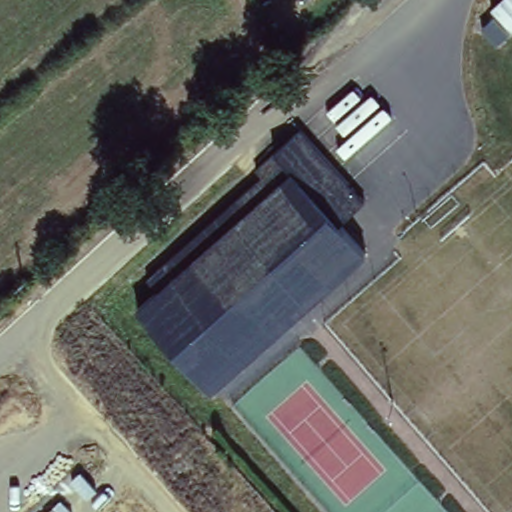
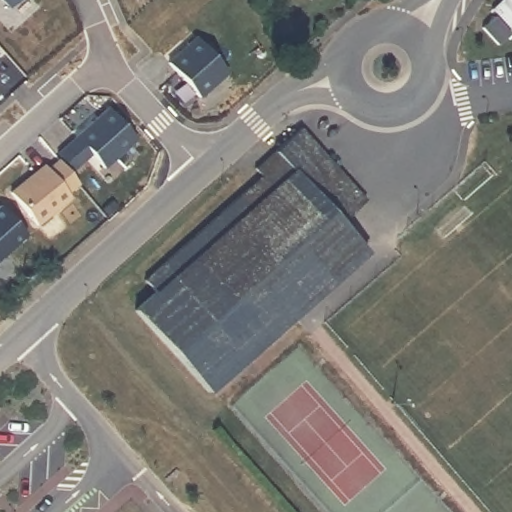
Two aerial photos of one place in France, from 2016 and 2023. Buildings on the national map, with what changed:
new [(2,0),(20,0),(10,9),(2,0)]
new [(512,0),(512,35),(497,46),(482,30),(497,17),(491,11),(504,0),(512,0)]
new [(230,71),(201,98),(167,62),(196,35),(230,71)]
new [(137,140),(106,169),(92,155),(73,173),(57,155),(109,106),(137,140)]
unchanged [(166,290),(157,282),(272,175),(269,173),(312,137),(375,202),(347,225),(368,249),(217,395),(145,313),(166,290)]
new [(41,160),(45,165),(56,155),(77,179),(66,190),(70,194),(37,224),(8,190),(41,160)]
new [(0,255),(0,206),(25,234),(0,255)]

